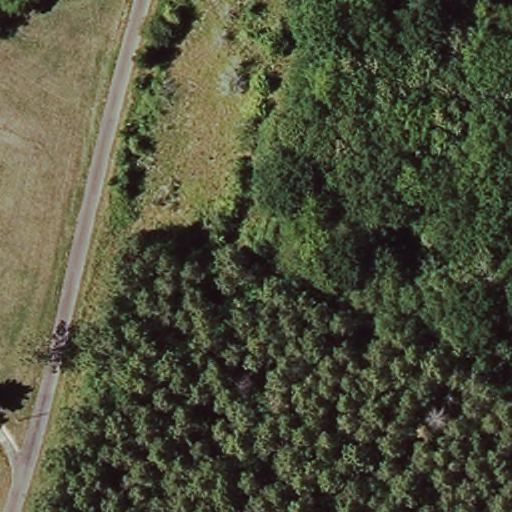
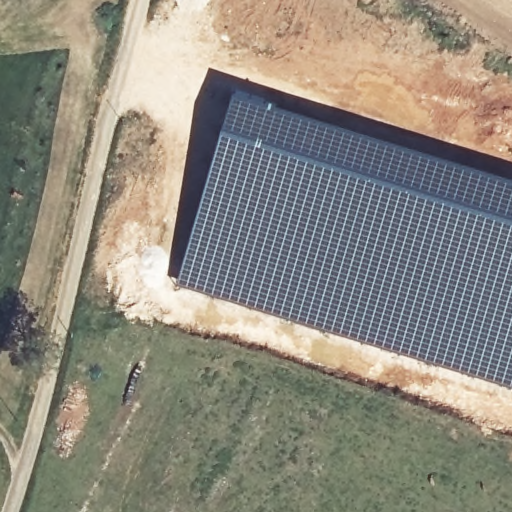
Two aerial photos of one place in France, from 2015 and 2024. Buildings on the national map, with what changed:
new [(302,122),(512,186),(512,389),(415,362),(175,287),(233,99),(302,122)]

